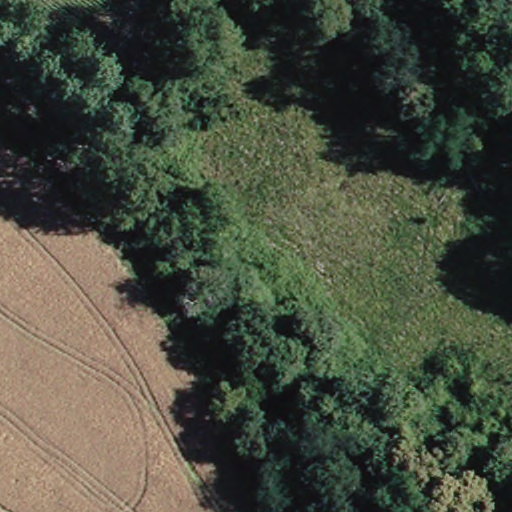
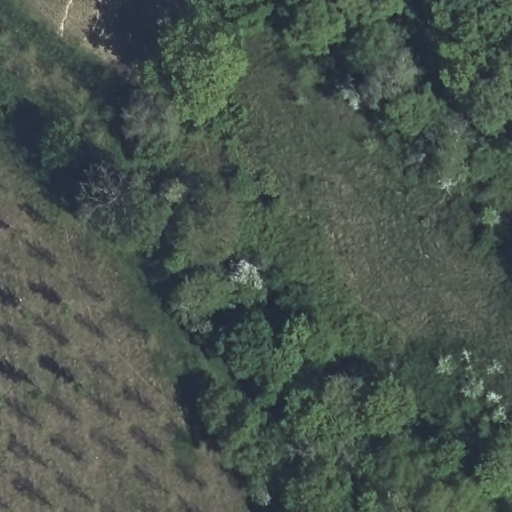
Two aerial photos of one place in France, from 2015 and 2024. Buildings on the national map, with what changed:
[]

